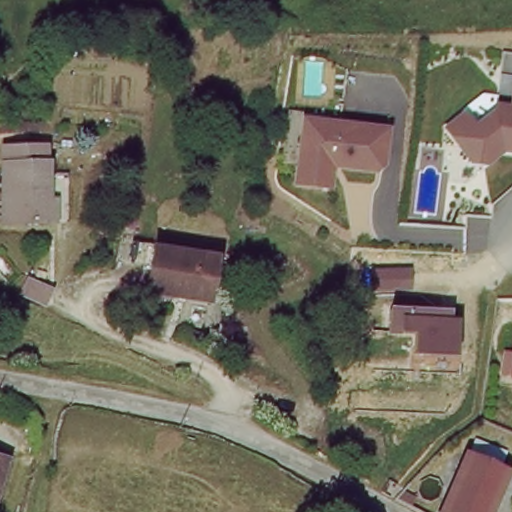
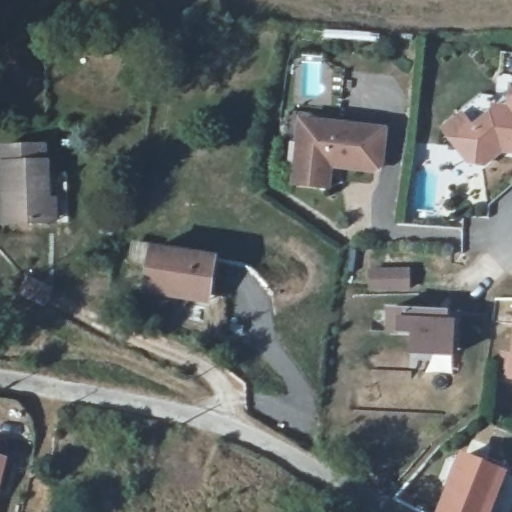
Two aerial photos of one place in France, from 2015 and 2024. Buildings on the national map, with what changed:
unchanged [(504,152),(502,165),(468,161),(443,129),(464,109),(479,122),(500,103),(512,103),(512,153),(504,152)]
unchanged [(393,126),(391,162),(378,178),(343,176),(341,190),(299,188),(307,118),(393,126)]
unchanged [(57,219),(50,219),(3,219),(1,146),(45,146),(45,161),(50,161),(50,199),(56,198),(57,219)]
unchanged [(180,295),(150,290),(156,245),(221,256),(215,293),(213,301),(180,295)]
unchanged [(28,276),(56,290),(46,307),(20,294),(28,276)]
unchanged [(452,311),(451,320),(458,321),(456,358),(412,355),(412,334),(401,334),(387,332),(388,308),(452,311)]
unchanged [(511,380),(512,367),(512,380),(511,380)]
unchanged [(489,512),(443,512),(469,457),(507,472),(489,512)]
unchanged [(0,484),(0,461),(5,462),(0,484)]

